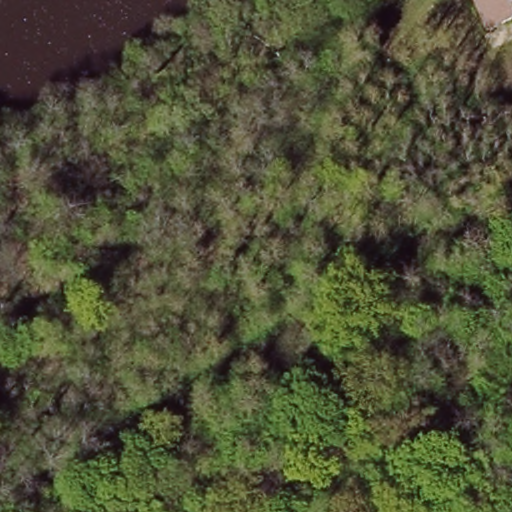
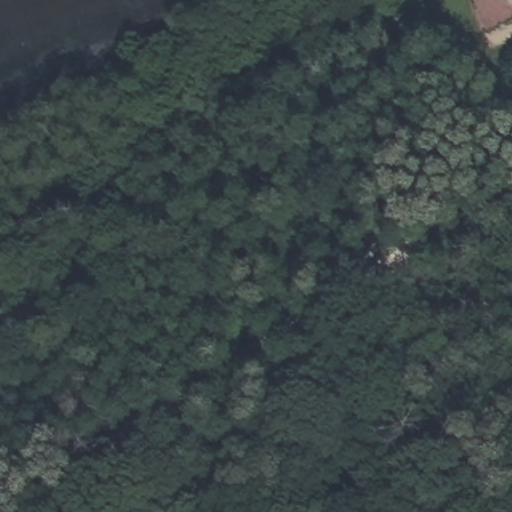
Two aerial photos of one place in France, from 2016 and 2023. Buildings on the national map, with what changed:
unchanged [(512,14),(490,22),(482,0),(512,0),(512,14)]

